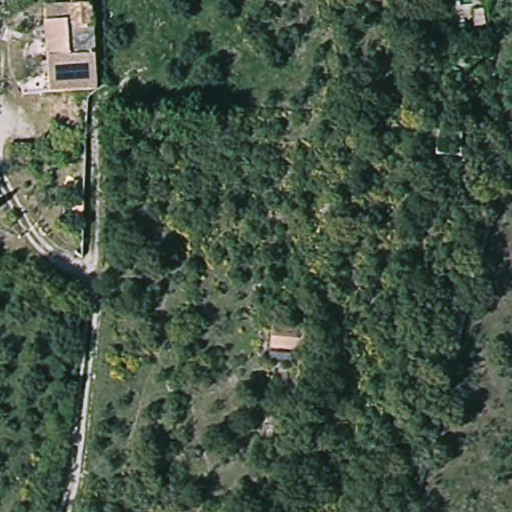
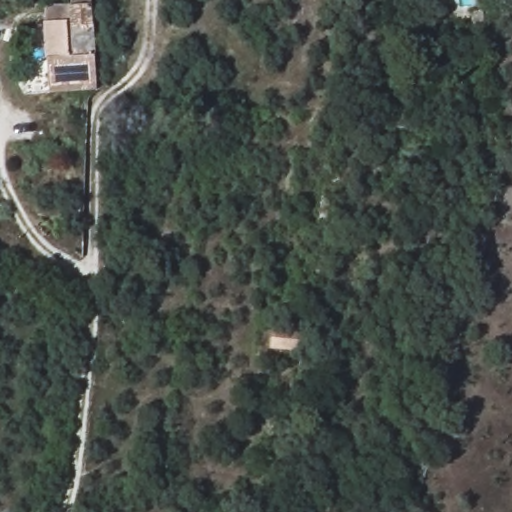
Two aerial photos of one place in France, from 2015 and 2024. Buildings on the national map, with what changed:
unchanged [(100,94),(48,100),(46,66),(45,31),(50,29),(50,7),(70,6),(71,28),(71,64),(95,61),(100,94)]
unchanged [(265,347),(269,330),(300,336),(296,355),(265,347)]

